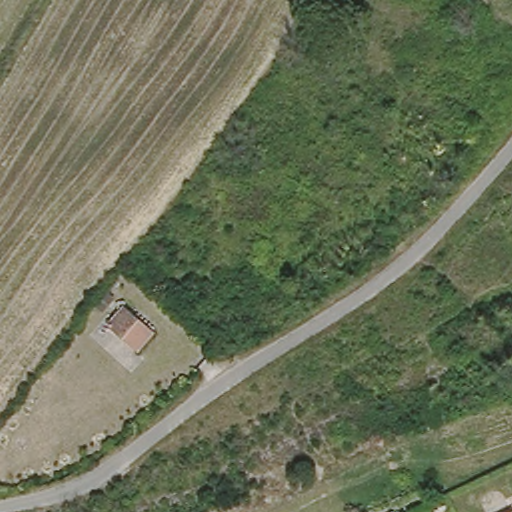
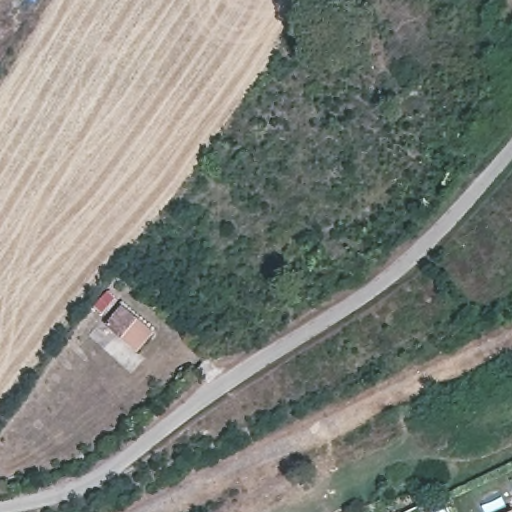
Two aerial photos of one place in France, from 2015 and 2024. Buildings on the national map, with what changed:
unchanged [(133,307),(147,320),(131,338),(116,325),(133,307)]
unchanged [(505,512),(512,509),(512,512),(505,512)]

